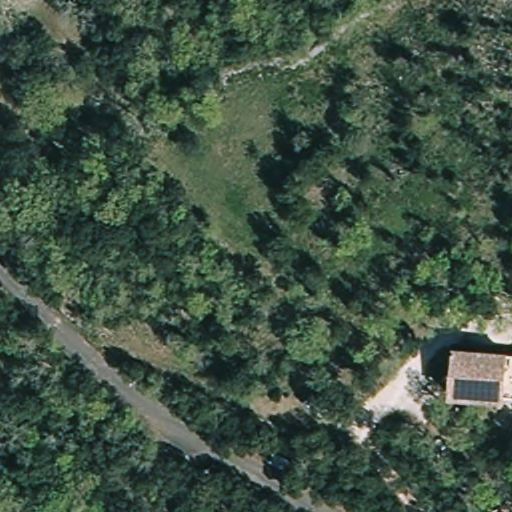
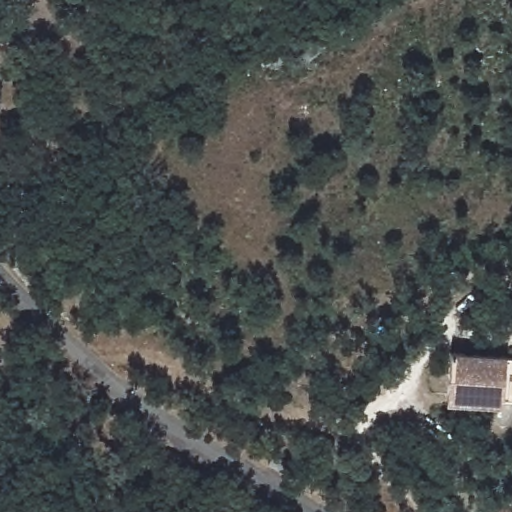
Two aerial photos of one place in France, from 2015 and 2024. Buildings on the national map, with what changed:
unchanged [(512,392),(453,390),(454,354),(512,356),(512,392)]
unchanged [(499,504),(511,495),(512,497),(512,512),(488,512),(499,504)]

